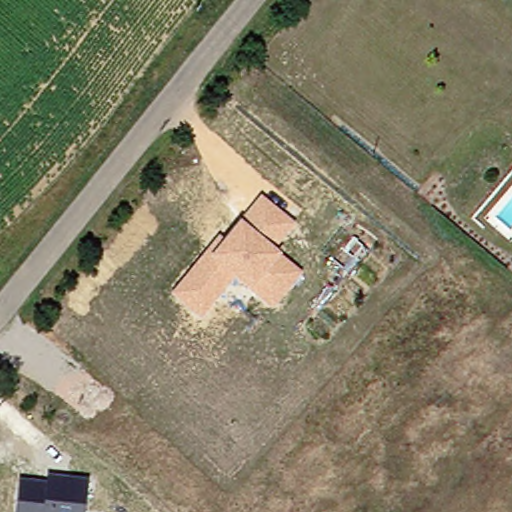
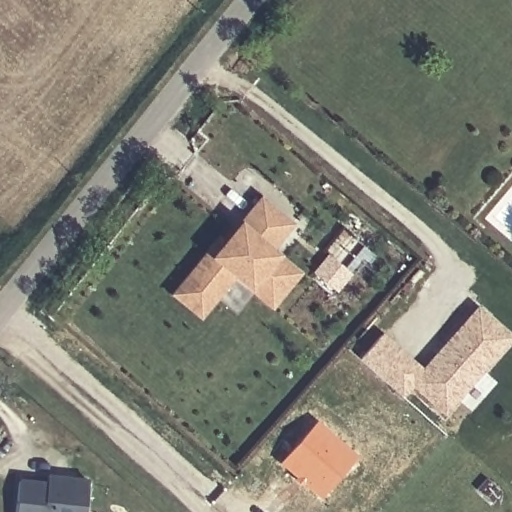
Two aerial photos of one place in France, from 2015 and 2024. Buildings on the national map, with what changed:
unchanged [(294,224),(275,251),(301,273),(271,309),(232,280),(199,319),(170,294),(217,235),(224,240),(260,197),(294,224)]
new [(400,394),(360,359),(383,333),(420,368),(477,305),(512,336),(512,339),(444,416),(408,385),(400,394)]
new [(357,457),(320,499),(279,463),(316,421),(357,457)]
unchanged [(86,479),(84,512),(16,512),(19,480),(46,483),(47,477),(86,479)]

